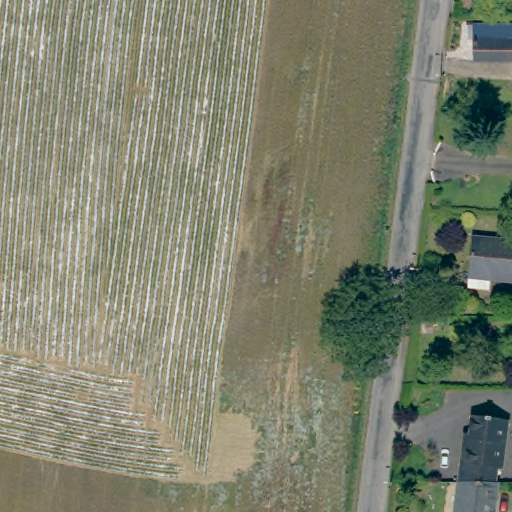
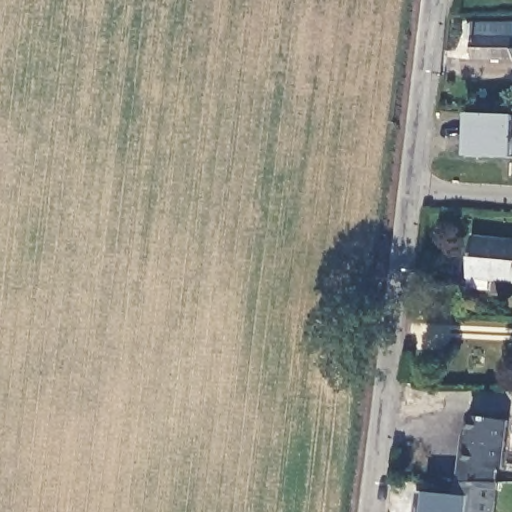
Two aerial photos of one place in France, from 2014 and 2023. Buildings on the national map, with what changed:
unchanged [(470,30),(512,29),(512,44),(512,61),(472,61),(470,30)]
new [(512,116),(512,160),(462,158),(466,114),(512,116)]
unchanged [(470,275),(471,236),(512,239),(512,278),(492,276),(492,286),(470,285),(470,275)]
unchanged [(457,452),(461,452),(464,423),(500,426),(496,472),(492,472),(491,486),(454,486),(457,452)]
unchanged [(495,488),(493,512),(453,512),(454,486),(495,488)]

